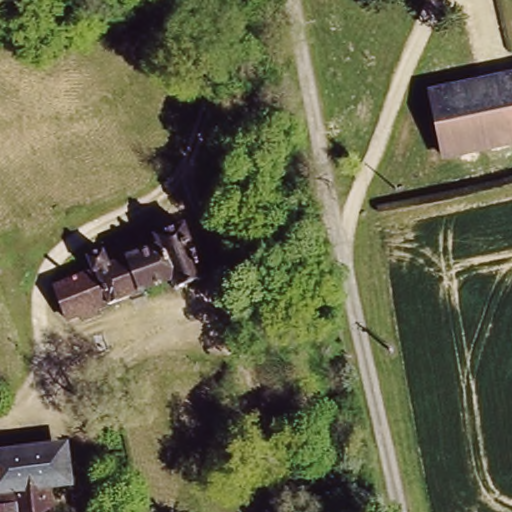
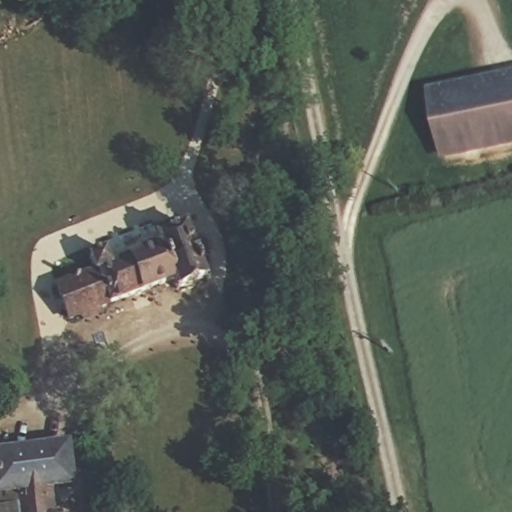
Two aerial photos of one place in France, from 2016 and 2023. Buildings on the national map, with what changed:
unchanged [(442,99),(512,82),(512,143),(455,157),(442,99)]
unchanged [(85,270),(80,257),(107,247),(113,258),(153,243),(149,232),(185,217),(207,270),(65,321),(50,282),(85,270)]
unchanged [(52,482),(55,512),(0,512),(0,448),(55,436),(62,480),(52,482)]

